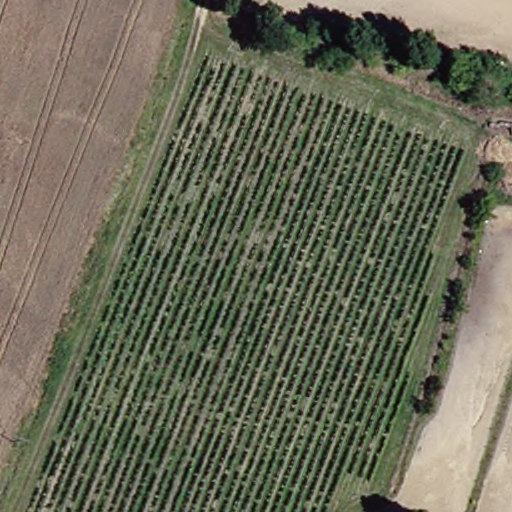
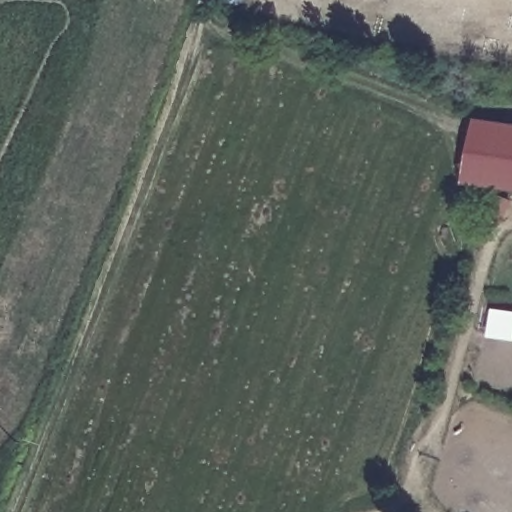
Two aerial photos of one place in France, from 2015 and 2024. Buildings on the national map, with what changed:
new [(512,122),(512,187),(468,181),(477,117),(512,122)]

